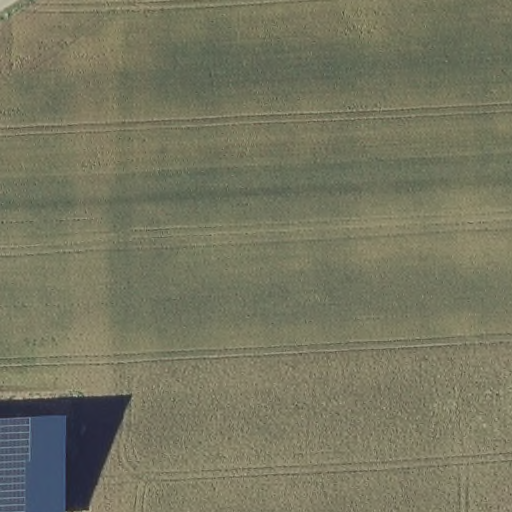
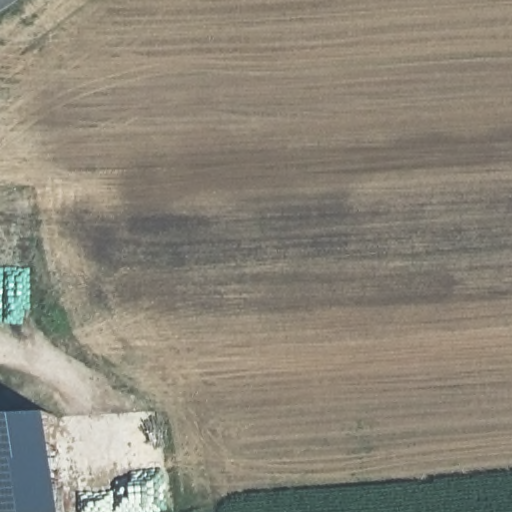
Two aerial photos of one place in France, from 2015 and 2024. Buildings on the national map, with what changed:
unchanged [(0,419),(57,416),(64,512),(0,512),(0,419)]

